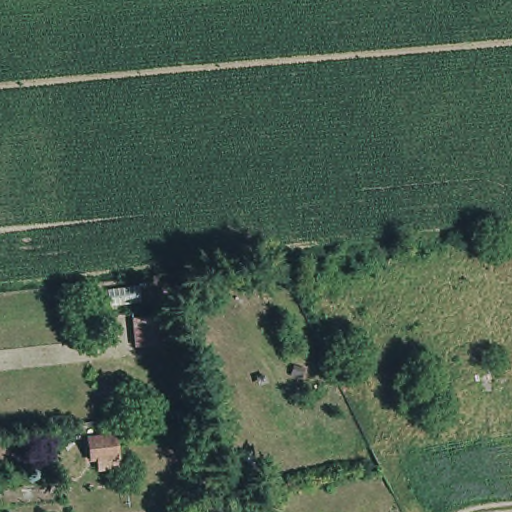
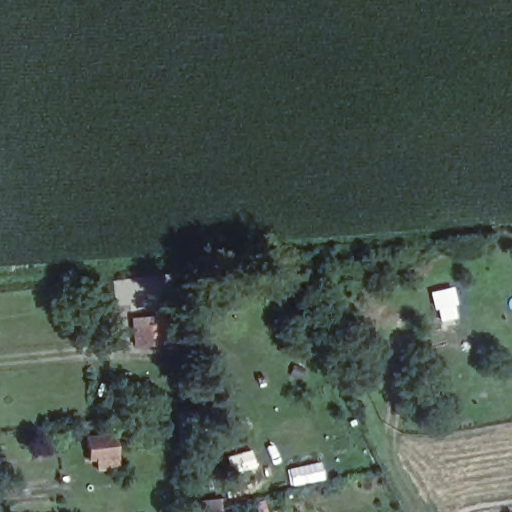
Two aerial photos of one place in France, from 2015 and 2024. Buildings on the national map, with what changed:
unchanged [(234,482),(237,492),(227,495),(223,484),(234,482)]
unchanged [(244,512),(229,512),(226,505),(240,501),(244,512)]

